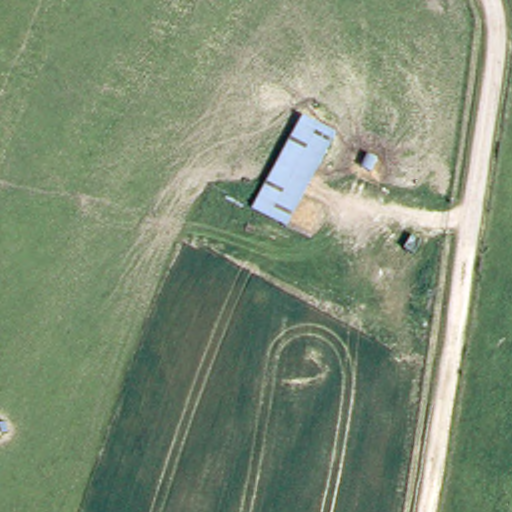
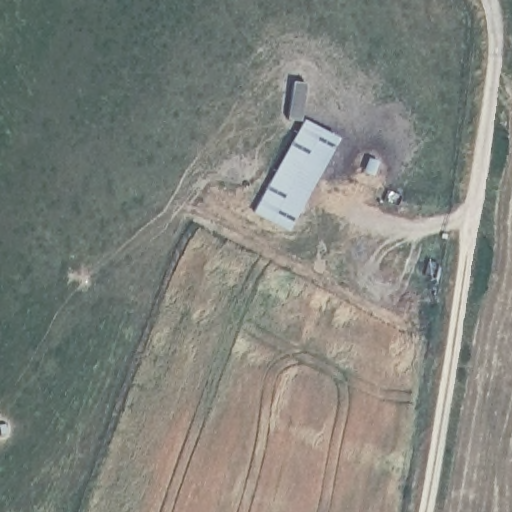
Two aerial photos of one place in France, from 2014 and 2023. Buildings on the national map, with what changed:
unchanged [(341,141),(293,231),(260,214),(308,124),(341,141)]

